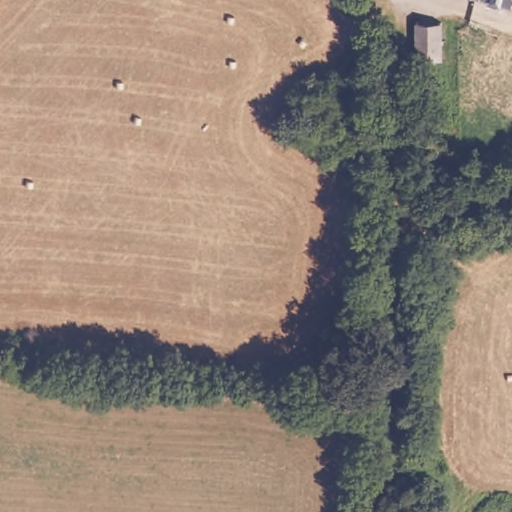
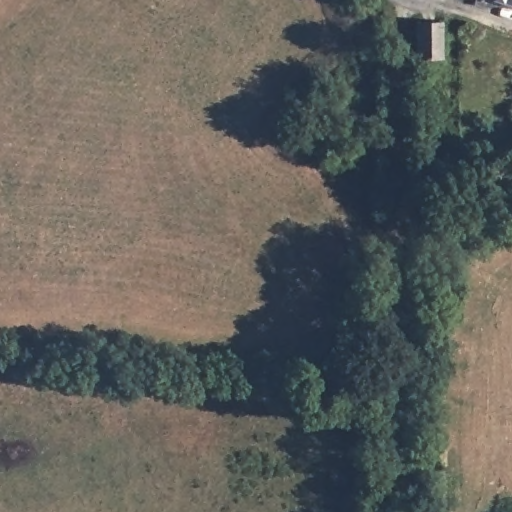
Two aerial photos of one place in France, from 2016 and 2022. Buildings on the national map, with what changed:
unchanged [(416,73),(416,66),(417,32),(442,31),(443,39),(444,71),(416,73)]

